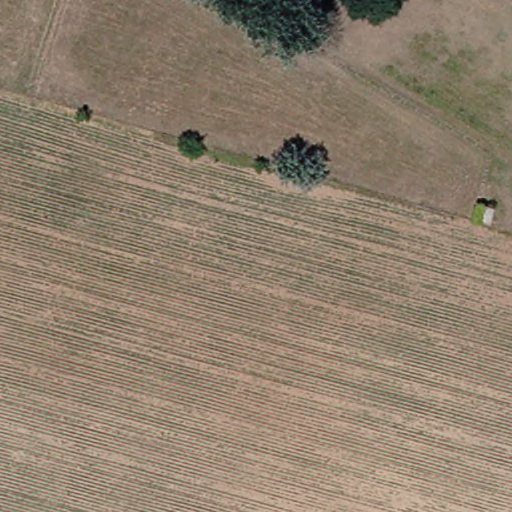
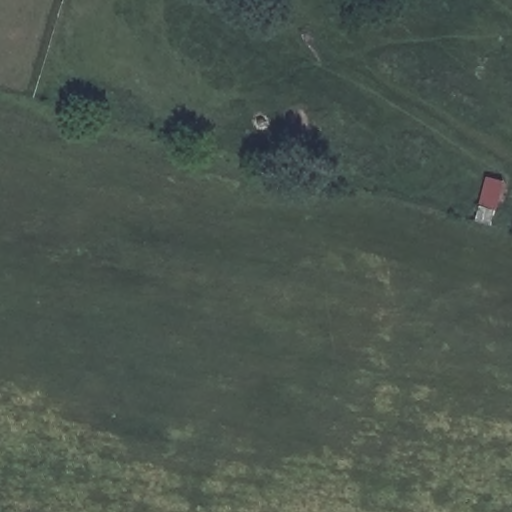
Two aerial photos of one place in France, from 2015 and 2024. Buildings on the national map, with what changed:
unchanged [(496,210),(492,225),(477,221),(480,206),(496,210)]

